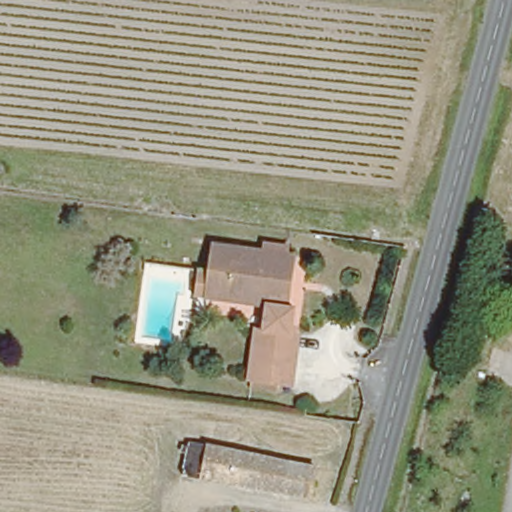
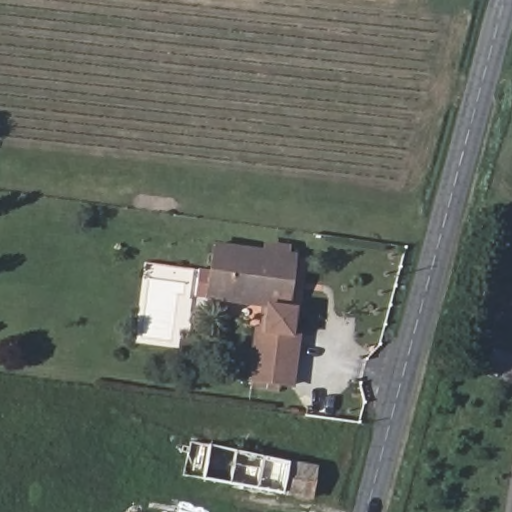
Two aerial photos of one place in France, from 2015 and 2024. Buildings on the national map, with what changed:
unchanged [(196,300),(200,273),(210,275),(212,248),(271,256),(272,248),(286,250),(285,257),(293,259),(287,309),(297,311),(295,338),(302,338),(297,386),(254,382),(260,335),(264,307),(196,300)]
unchanged [(204,482),(182,477),(190,442),(209,445),(320,466),(313,503),(204,482)]

